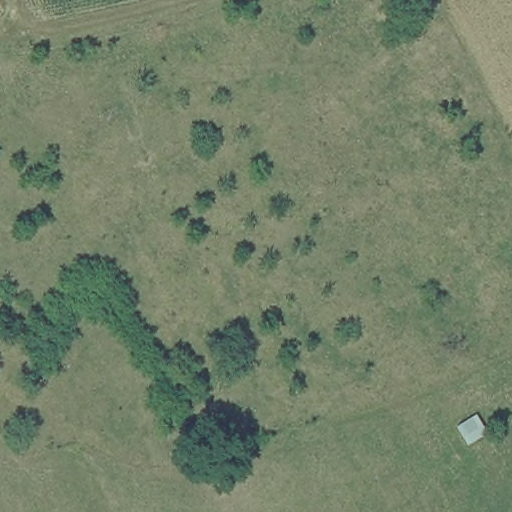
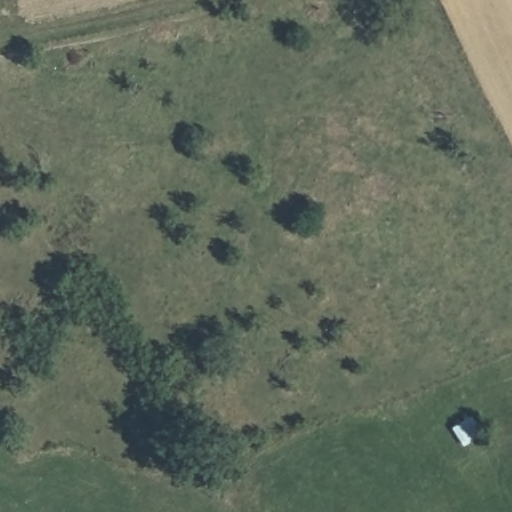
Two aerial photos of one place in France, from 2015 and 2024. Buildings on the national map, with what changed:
unchanged [(453,426),(475,413),(485,433),(465,447),(453,426)]

